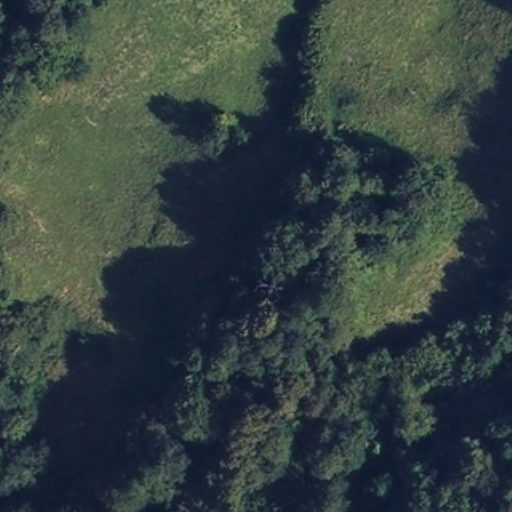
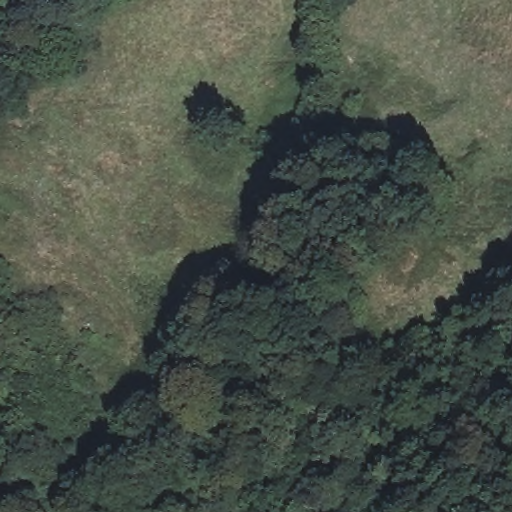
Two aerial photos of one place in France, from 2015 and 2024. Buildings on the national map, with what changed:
[]

